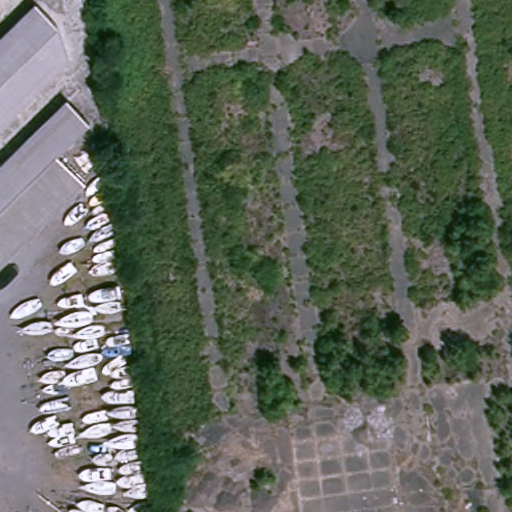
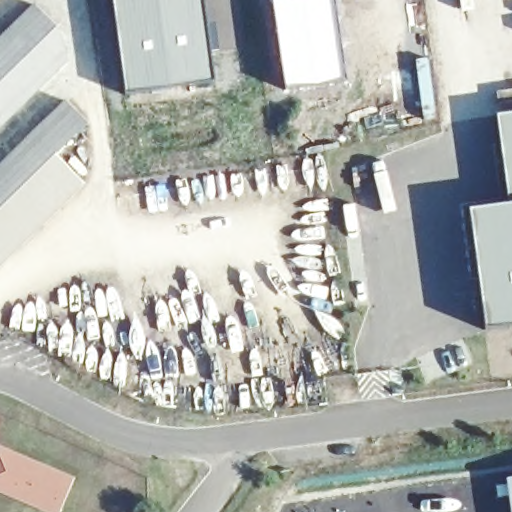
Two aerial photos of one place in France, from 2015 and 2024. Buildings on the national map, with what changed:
new [(126,93),(114,0),(203,0),(214,81),(126,93)]
new [(284,89),(271,0),(332,0),(343,80),(284,89)]
unchanged [(41,2),(61,22),(71,56),(0,126),(0,42),(41,2)]
new [(427,59),(434,115),(422,117),(414,60),(427,59)]
unchanged [(57,154),(67,165),(85,182),(0,265),(0,166),(68,100),(89,122),(57,154)]
new [(473,205),(509,200),(497,112),(512,111),(512,321),(486,325),(473,205)]
new [(61,512),(46,512),(0,492),(0,446),(74,477),(61,512)]
new [(512,512),(509,512),(503,477),(512,476),(512,512)]

